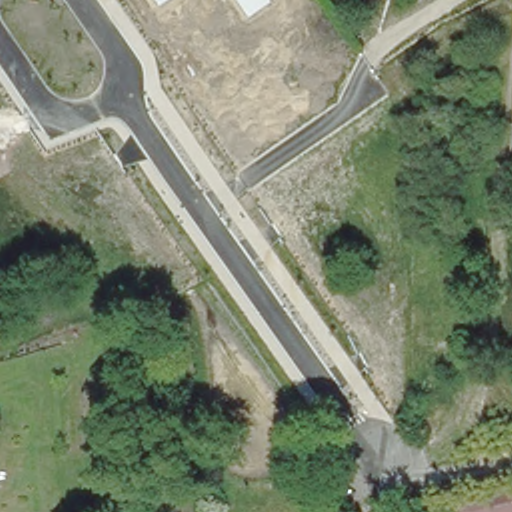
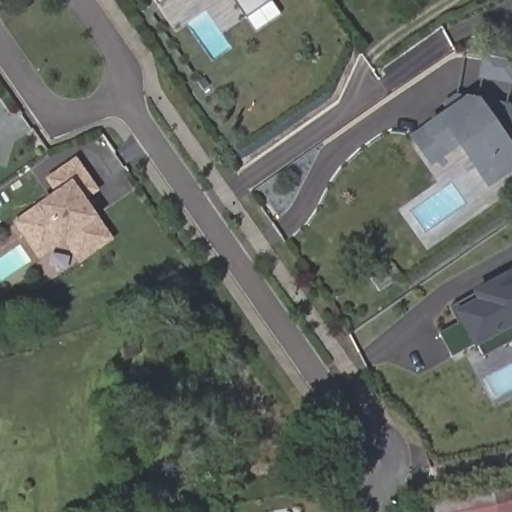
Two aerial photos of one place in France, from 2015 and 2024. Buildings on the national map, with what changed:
unchanged [(158,0),(171,0),(163,6),(158,0)]
unchanged [(238,0),(271,0),(273,2),(251,17),(238,0)]
new [(512,60),(512,80),(484,75),(488,56),(512,60)]
new [(480,174),(459,145),(442,158),(433,166),(411,139),(424,129),(449,110),(446,105),(457,95),(468,96),(482,99),(511,103),(512,105),(512,170),(490,185),(480,174)]
new [(47,180),(78,157),(101,191),(89,201),(101,217),(115,240),(80,265),(66,243),(42,261),(14,222),(40,205),(57,193),(47,180)]
new [(475,345),(454,357),(441,333),(458,323),(451,308),(475,294),(474,291),(512,271),(512,343),(485,357),(480,346),(476,348),(475,345)]
unchanged [(428,506),(497,492),(501,512),(429,512),(428,506)]

